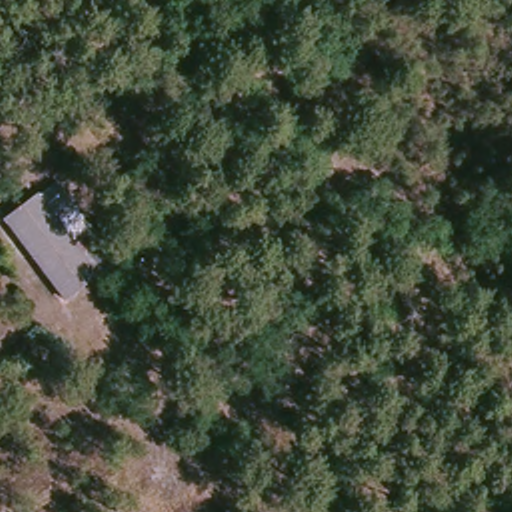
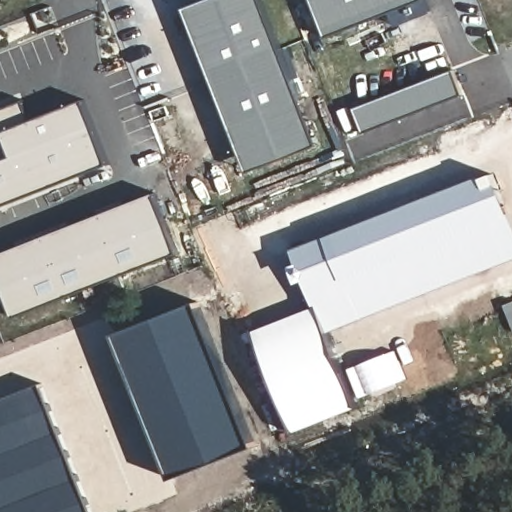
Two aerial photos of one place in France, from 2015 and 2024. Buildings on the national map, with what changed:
new [(202,0),(267,0),(304,96),(233,125),(187,6),(202,0)]
new [(324,35),(313,0),(425,0),(324,35)]
new [(452,71),(461,94),(363,131),(355,107),(452,71)]
new [(116,158),(0,203),(0,105),(30,93),(38,112),(91,92),(116,158)]
new [(304,96),(322,142),(251,170),(233,125),(304,96)]
new [(329,236),(493,174),(512,218),(512,259),(364,318),(329,236)]
demolished [(53,182),(92,232),(77,244),(34,195),(53,182)]
new [(187,246),(22,311),(0,255),(0,249),(163,185),(187,246)]
demolished [(34,195),(77,244),(92,232),(112,259),(64,300),(1,221),(34,195)]
new [(320,307),(294,252),(329,236),(364,318),(328,331),(357,412),(300,431),(254,330),(320,307)]
new [(196,302),(255,447),(171,478),(116,334),(196,302)]
new [(91,512),(0,512),(0,400),(41,385),(91,512)]

